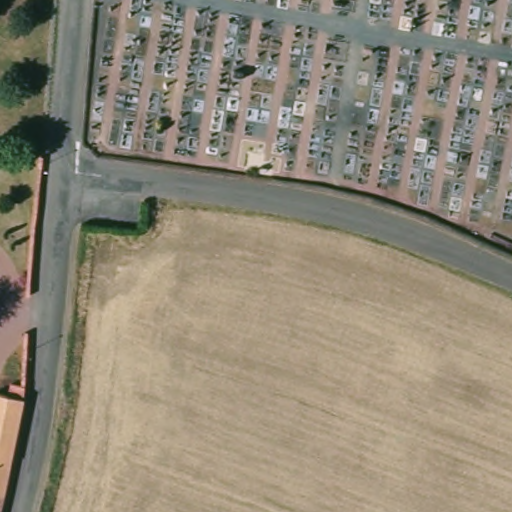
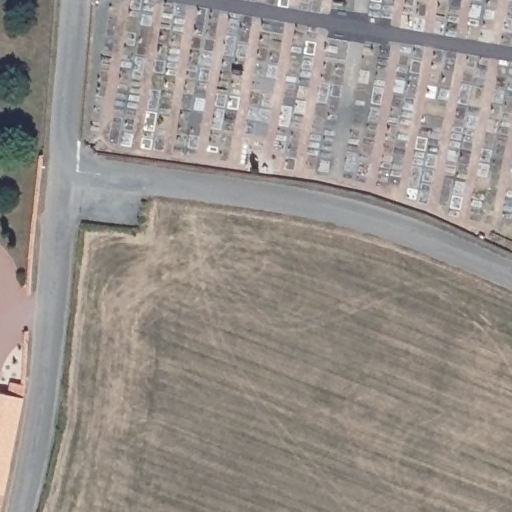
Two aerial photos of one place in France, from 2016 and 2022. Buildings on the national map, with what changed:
unchanged [(9,386),(24,387),(23,397),(1,512),(0,512),(0,395),(7,396),(9,386)]

